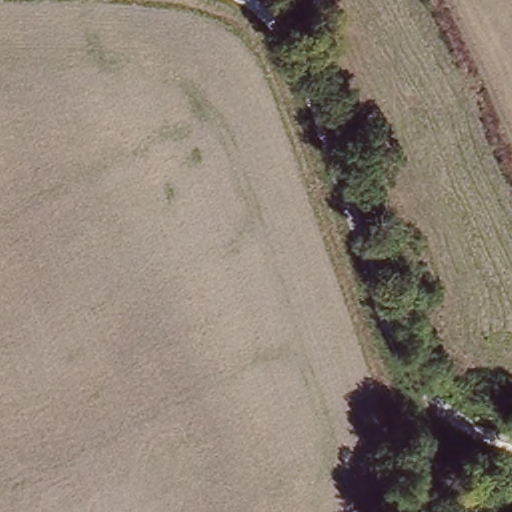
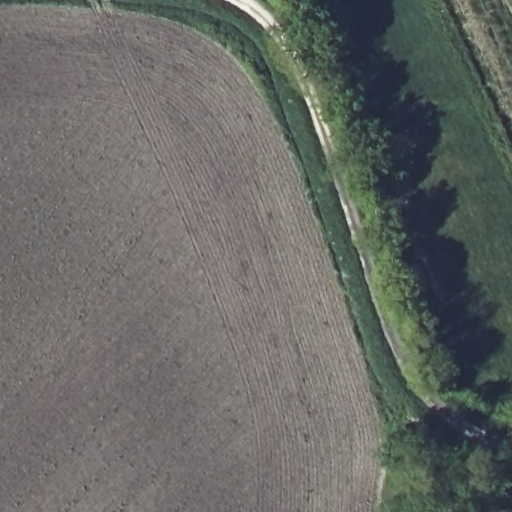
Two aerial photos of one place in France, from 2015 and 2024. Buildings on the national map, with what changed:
[]

